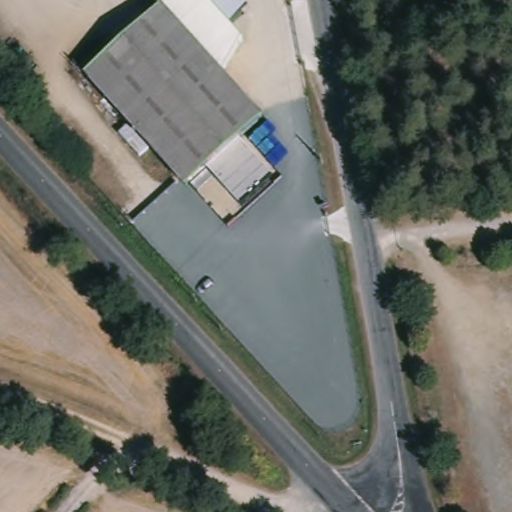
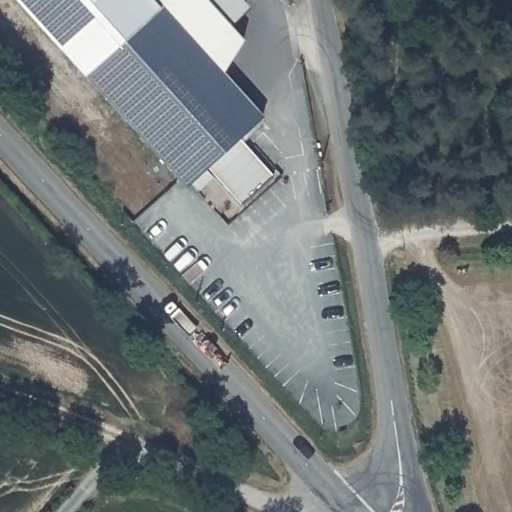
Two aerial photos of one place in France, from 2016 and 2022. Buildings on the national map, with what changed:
new [(158,13),(87,76),(59,46),(16,0),(146,0),(158,13)]
unchanged [(158,13),(146,0),(199,0),(240,46),(217,77),(257,122),(181,190),(83,80),(158,13)]
new [(199,0),(242,0),(247,5),(230,24),(244,39),(240,46),(199,0)]
unchanged [(211,164),(241,137),(273,175),(242,204),(211,164)]

